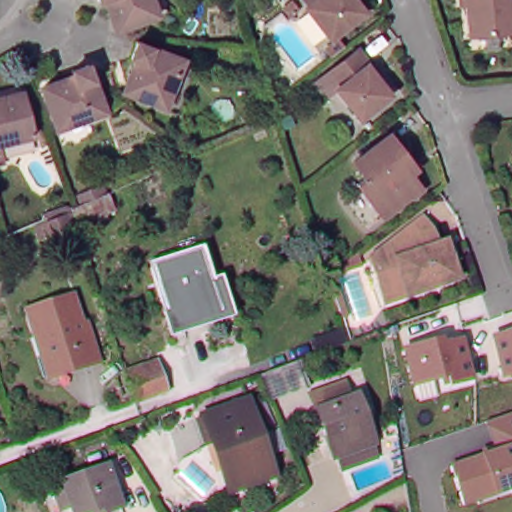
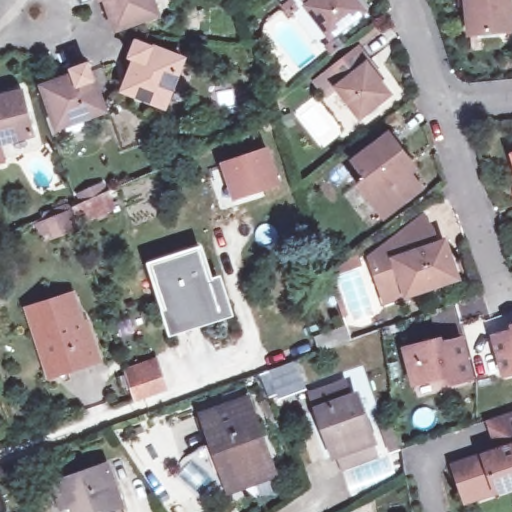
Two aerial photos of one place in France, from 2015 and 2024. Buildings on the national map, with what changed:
unchanged [(308,7),(310,4),(307,0),(356,0),(365,13),(332,38),(308,7)]
unchanged [(474,0),(512,0),(512,34),(477,36),(474,0)]
unchanged [(184,59),(165,107),(125,91),(137,58),(132,56),(137,40),(184,59)]
unchanged [(364,46),(396,90),(364,115),(341,86),(350,79),(340,64),(364,46)]
unchanged [(107,111),(57,129),(42,86),(73,75),(71,69),(89,64),(92,72),(95,79),(107,111)]
unchanged [(22,90),(34,135),(0,144),(0,96),(22,90)]
unchanged [(390,216),(365,183),(374,176),(362,159),(396,134),(414,156),(422,166),(415,173),(427,188),(390,216)]
new [(269,149),(280,184),(237,198),(225,164),(269,149)]
unchanged [(115,210),(108,213),(109,217),(98,221),(97,218),(80,225),(73,205),(77,204),(84,202),(79,192),(99,183),(104,193),(108,191),(115,210)]
unchanged [(72,229),(53,238),(47,221),(67,213),(72,229)]
unchanged [(382,290),(372,262),(424,222),(435,238),(442,249),(445,249),(457,280),(440,287),(439,290),(425,295),(423,293),(407,298),(387,305),(382,290)]
unchanged [(330,272),(358,251),(363,265),(336,274),(349,315),(345,316),(330,272)]
unchanged [(234,314),(178,332),(175,322),(158,267),(168,264),(167,258),(177,254),(180,260),(205,253),(215,284),(224,280),(234,314)]
unchanged [(39,335),(30,309),(72,296),(82,322),(87,320),(100,361),(59,374),(52,376),(39,335)]
unchanged [(495,338),(508,333),(507,329),(512,327),(512,375),(502,378),(495,338)]
unchanged [(318,352),(313,339),(345,328),(349,341),(318,352)]
unchanged [(444,337),(447,342),(464,339),(475,379),(447,388),(440,379),(410,385),(402,349),(444,337)]
unchanged [(127,371),(157,359),(167,389),(137,400),(127,371)]
unchanged [(345,379),(350,394),(357,393),(379,452),(341,466),(315,390),(345,379)]
unchanged [(212,437),(205,415),(249,399),(274,474),(241,485),(230,489),(212,437)]
unchanged [(462,505),(451,464),(482,454),(497,449),(489,419),(512,413),(512,490),(499,494),(462,505)]
unchanged [(397,435),(387,439),(382,426),(395,421),(397,435)]
unchanged [(57,487),(70,483),(69,480),(114,464),(129,505),(112,511),(110,506),(92,512),(80,512),(79,507),(65,511),(57,487)]

